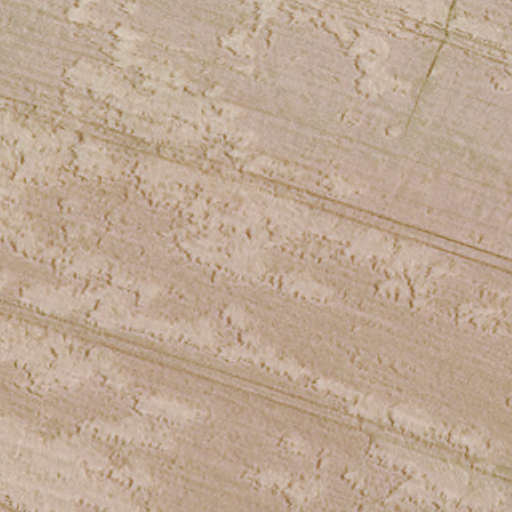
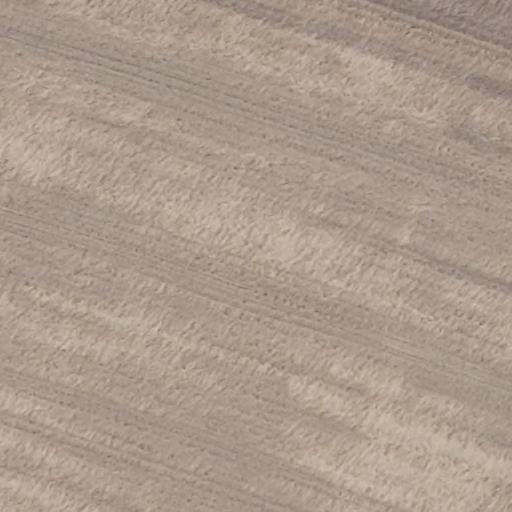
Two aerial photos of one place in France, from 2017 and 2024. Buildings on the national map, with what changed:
[]

